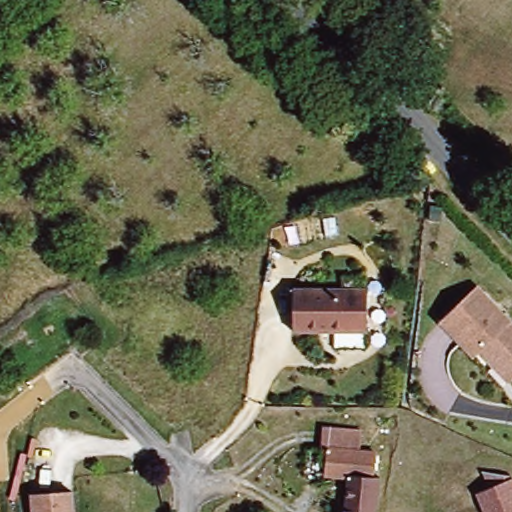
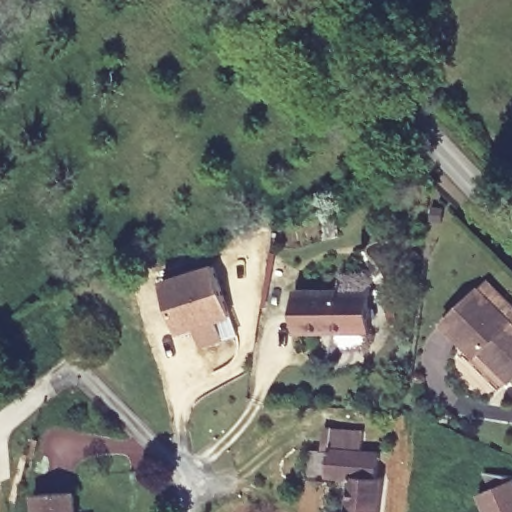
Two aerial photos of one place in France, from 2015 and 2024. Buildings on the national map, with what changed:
new [(216,264),(232,318),(217,323),(222,340),(200,347),(195,330),(178,335),(162,281),(216,264)]
unchanged [(477,284),(512,318),(512,376),(510,378),(481,347),(475,352),(442,320),(477,284)]
unchanged [(290,289),(365,288),(365,332),(290,332),(290,289)]
unchanged [(328,475),(330,450),(325,450),(325,428),(365,432),(363,452),(379,453),(378,477),(385,477),(382,512),(350,512),(352,477),(328,475)]
unchanged [(489,490),(485,472),(512,474),(512,512),(484,512),(476,493),(489,490)]
unchanged [(34,498),(72,495),(74,512),(35,512),(34,498)]

